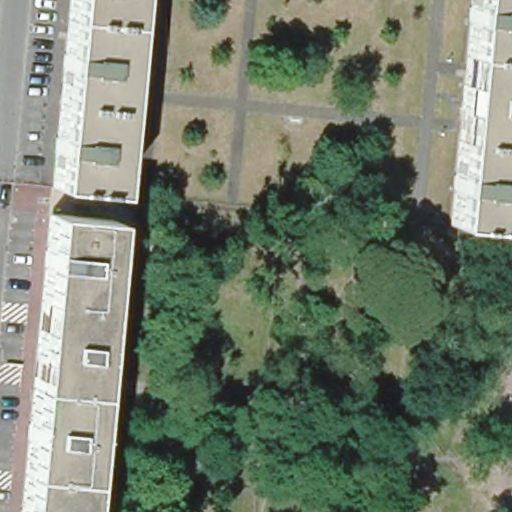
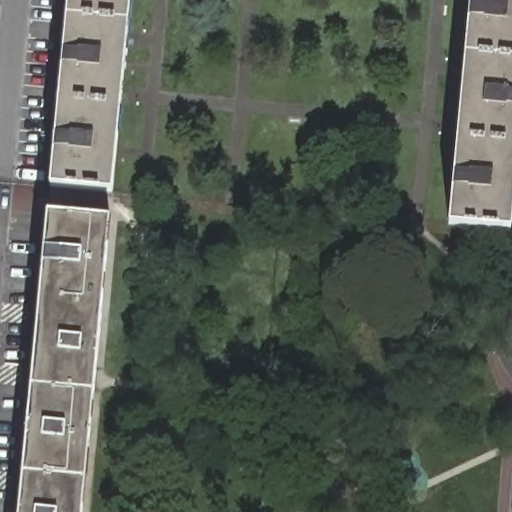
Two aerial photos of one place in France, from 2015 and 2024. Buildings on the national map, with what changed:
unchanged [(69,0),(132,0),(115,194),(76,191),(75,191),(52,190),(52,188),(69,0)]
unchanged [(512,0),(512,229),(450,224),(472,0),(512,0)]
unchanged [(48,215),(111,222),(82,512),(19,512),(48,215)]

